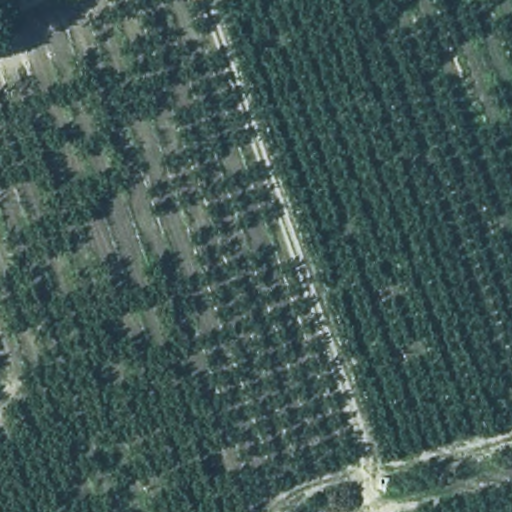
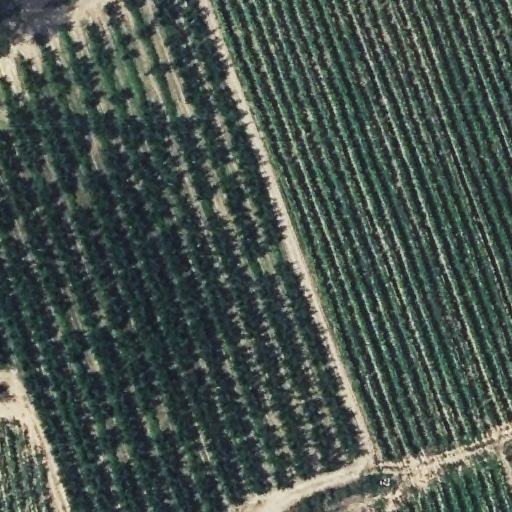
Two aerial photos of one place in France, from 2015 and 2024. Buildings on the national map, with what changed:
[]

